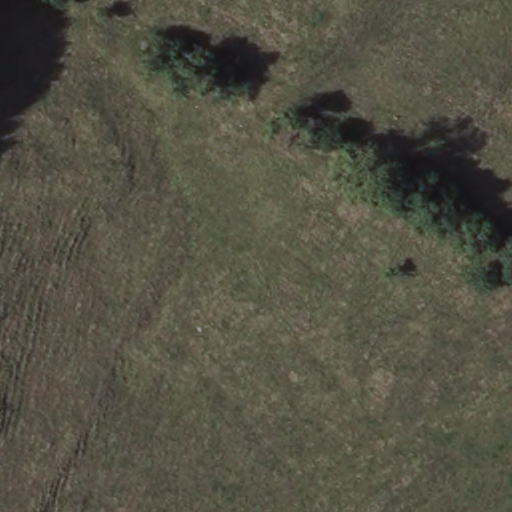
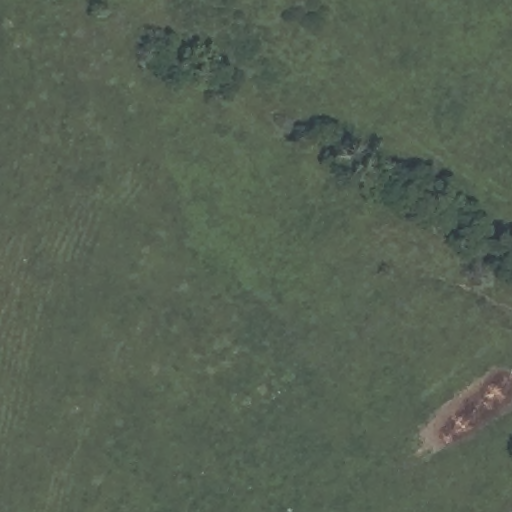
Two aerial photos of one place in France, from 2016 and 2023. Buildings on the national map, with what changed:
[]

